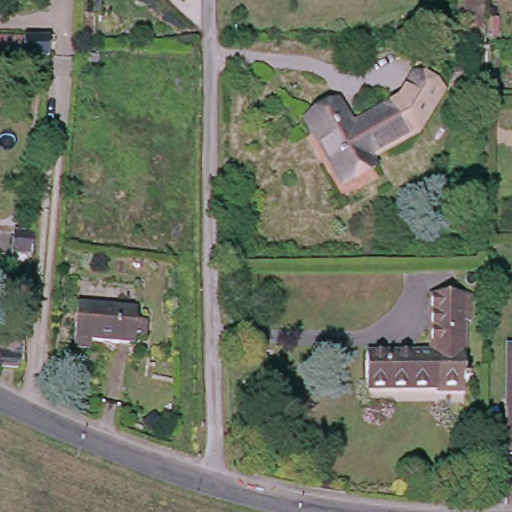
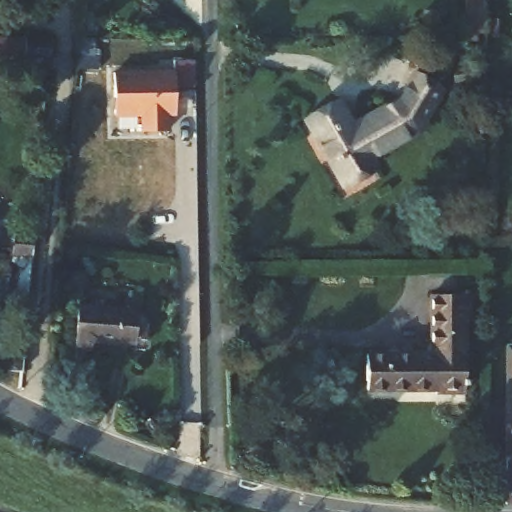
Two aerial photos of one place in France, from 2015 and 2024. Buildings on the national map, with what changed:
unchanged [(485,51),(464,50),(464,0),(485,0),(485,51)]
unchanged [(47,59),(0,58),(0,38),(48,39),(47,59)]
new [(169,118),(169,132),(140,132),(140,118),(115,118),(112,72),(173,71),(173,63),(193,62),(193,91),(173,91),(174,117),(169,118)]
unchanged [(307,119),(336,103),(352,126),(397,99),(414,77),(437,90),(413,130),(370,157),(375,166),(345,183),(307,119)]
unchanged [(26,306),(5,304),(5,290),(15,291),(16,265),(8,265),(11,230),(32,231),(26,306)]
unchanged [(429,393),(429,389),(428,356),(428,320),(428,296),(458,296),(458,319),(460,393),(429,393)]
unchanged [(140,315),(148,316),(147,335),(138,334),(137,342),(95,338),(94,346),(75,343),(81,300),(140,307),(140,315)]
unchanged [(0,366),(0,334),(23,336),(21,368),(7,367),(0,366)]
unchanged [(502,453),(501,345),(512,345),(512,454),(502,453)]
unchanged [(362,390),(362,356),(428,356),(429,389),(362,390)]

